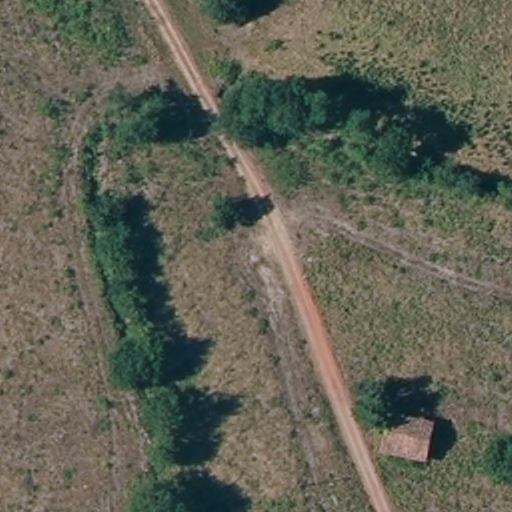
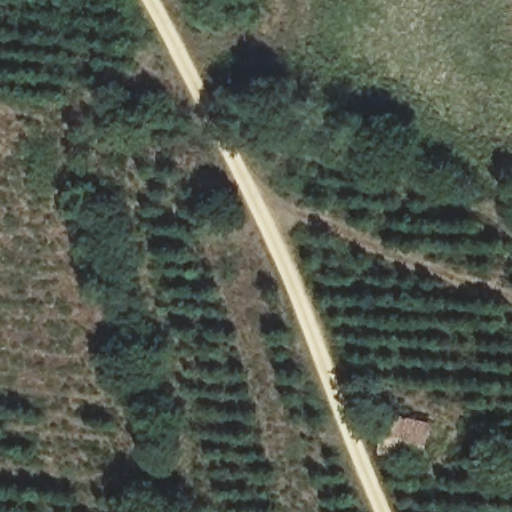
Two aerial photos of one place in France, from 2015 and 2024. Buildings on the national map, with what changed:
unchanged [(417,459),(378,449),(386,421),(425,431),(417,459)]

